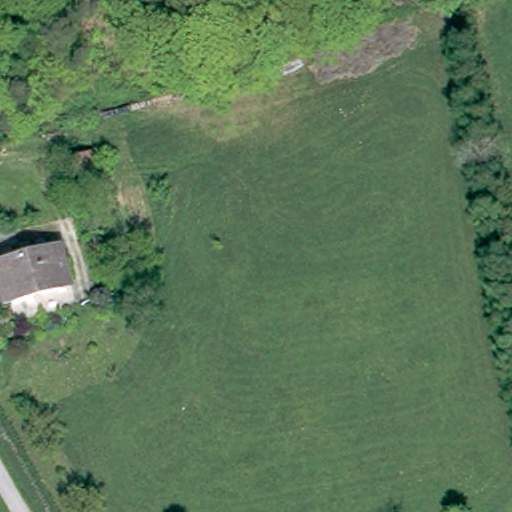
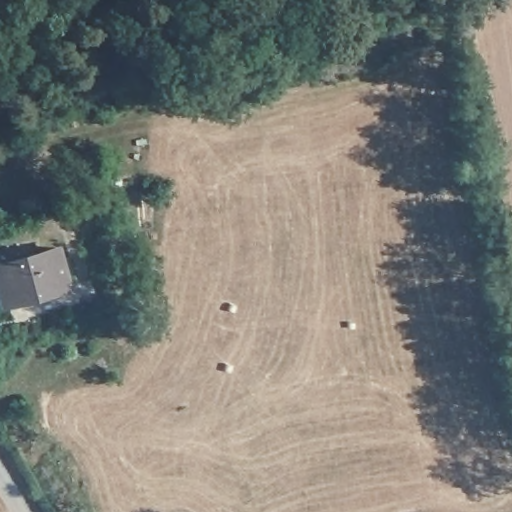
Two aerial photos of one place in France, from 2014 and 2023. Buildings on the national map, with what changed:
unchanged [(69,289),(8,310),(0,282),(0,267),(56,248),(69,289)]

